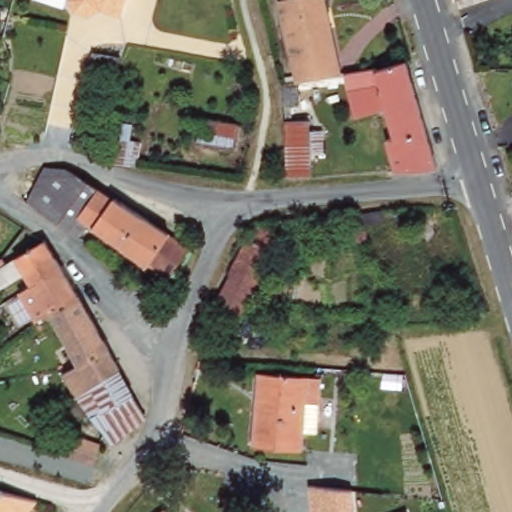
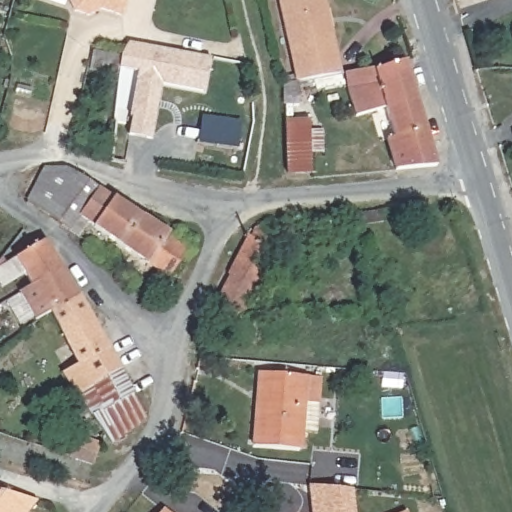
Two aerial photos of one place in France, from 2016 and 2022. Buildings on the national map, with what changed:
unchanged [(102,9),(94,16),(77,10),(72,0),(129,0),(124,16),(102,9)]
unchanged [(330,26),(340,75),(297,81),(280,0),(324,0),(326,10),(330,26)]
new [(204,91),(162,83),(154,127),(148,140),(130,136),(132,118),(130,117),(138,72),(119,69),(120,56),(129,42),(211,56),(204,91)]
new [(90,68),(92,51),(120,56),(118,72),(90,68)]
unchanged [(375,68),(376,70),(405,61),(437,166),(396,170),(387,140),(395,138),(387,109),(356,116),(345,73),(375,68)]
unchanged [(299,105),(283,104),(284,83),(297,81),(299,105)]
unchanged [(241,125),(236,151),(197,144),(202,119),(241,125)]
unchanged [(312,174),(287,174),(286,121),(309,120),(312,174)]
demolished [(111,159),(113,141),(130,143),(141,144),(137,166),(111,162),(111,159)]
unchanged [(80,217),(81,218),(69,231),(27,201),(45,168),(67,169),(98,188),(80,217)]
unchanged [(167,234),(188,248),(169,277),(81,218),(80,217),(98,188),(167,234)]
unchanged [(363,225),(362,214),(382,211),(384,222),(363,225)]
unchanged [(242,317),(215,303),(230,276),(227,275),(249,235),(251,236),(251,235),(251,233),(252,232),(252,231),(253,230),(254,229),(255,228),(256,227),(257,226),(258,226),(260,226),(262,225),(263,226),(265,226),(266,226),(267,227),(268,228),(269,229),(270,230),(271,231),(271,232),(272,233),(272,235),(272,236),(272,237),(271,239),(273,241),(270,246),(276,249),(242,317)]
unchanged [(357,242),(355,226),(363,225),(366,240),(357,242)]
unchanged [(6,264),(45,240),(62,268),(31,286),(25,273),(1,288),(0,286),(0,259),(2,258),(6,264)]
unchanged [(77,295),(51,312),(36,321),(19,293),(31,286),(62,268),(77,295)]
unchanged [(77,295),(120,370),(76,394),(62,373),(79,364),(51,312),(77,295)]
unchanged [(145,417),(141,423),(112,444),(89,412),(80,419),(70,406),(80,399),(76,394),(120,370),(145,417)]
unchanged [(307,377),(321,378),(317,433),(302,432),(302,450),(253,446),(257,402),(257,389),(258,373),(307,377)]
unchanged [(76,436),(100,444),(93,465),(69,457),(76,436)]
unchanged [(307,486),(353,490),(355,512),(309,512),(307,486)]
unchanged [(37,501),(28,512),(0,512),(0,491),(37,501)]

